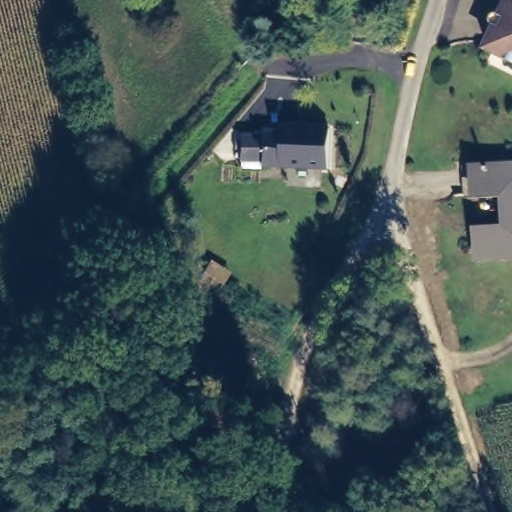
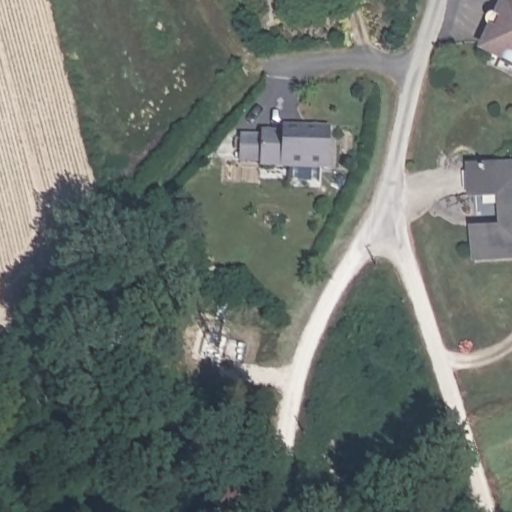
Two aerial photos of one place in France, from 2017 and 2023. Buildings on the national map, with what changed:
unchanged [(492,34),(488,30),(489,26),(490,22),(492,19),(496,17),(502,16),(507,4),(512,4),(512,67),(495,60),(495,54),(488,52),(495,36),(492,34)]
unchanged [(286,135),(287,130),(331,132),(332,168),(266,166),(238,169),(237,136),(266,134),(286,135)]
unchanged [(512,258),(480,260),(480,231),(501,230),(500,194),(477,195),(475,167),(512,164),(512,258)]

